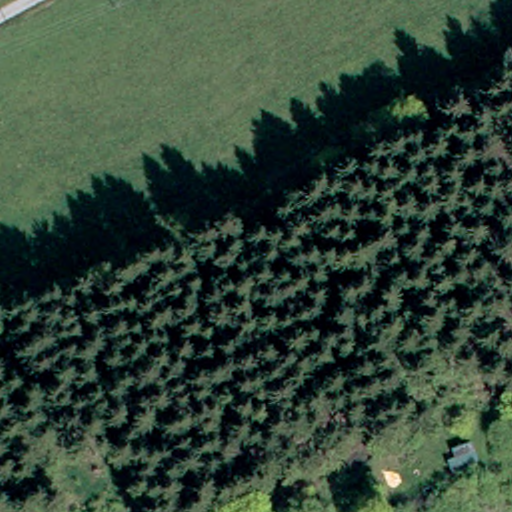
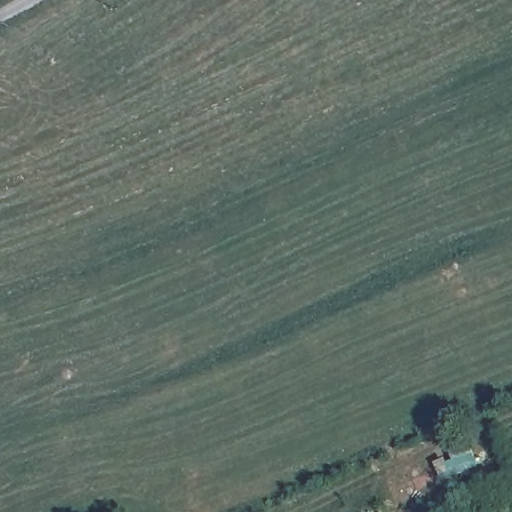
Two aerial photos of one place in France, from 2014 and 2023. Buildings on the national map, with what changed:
[]

